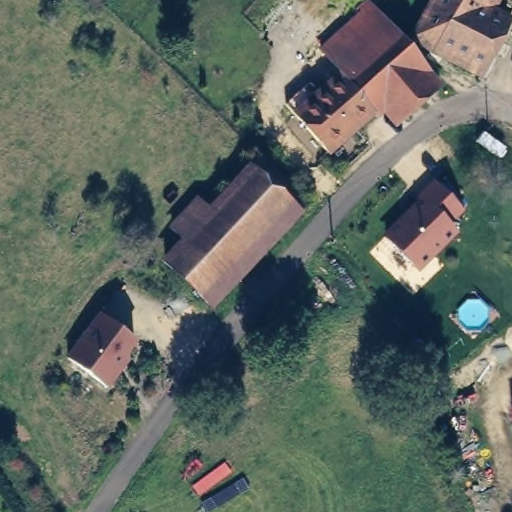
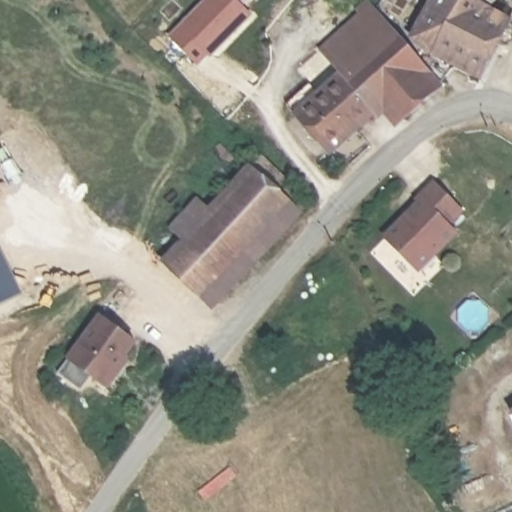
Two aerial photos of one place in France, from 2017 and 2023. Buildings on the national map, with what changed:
new [(207,56),(196,66),(167,36),(206,0),(237,0),(252,16),(210,58),(207,56)]
unchanged [(512,19),(512,24),(486,76),(426,50),(415,36),(433,0),(500,0),(495,11),(512,19)]
unchanged [(427,74),(393,105),(331,160),(283,110),(306,88),(317,99),(343,76),(318,48),(367,5),(386,26),(427,74)]
unchanged [(443,91),(409,122),(393,105),(427,74),(443,91)]
unchanged [(217,305),(185,276),(191,270),(171,250),(198,221),(212,231),(266,173),(305,209),(217,305)]
unchanged [(418,200),(416,198),(433,180),(465,210),(451,226),(458,233),(418,273),(380,237),(418,200)]
new [(22,293),(0,303),(0,244),(22,293)]
unchanged [(71,359),(101,312),(138,341),(125,357),(129,360),(107,389),(71,359)]
unchanged [(255,379),(236,402),(228,395),(248,373),(255,379)]
unchanged [(512,411),(512,420),(508,414),(512,411)]

